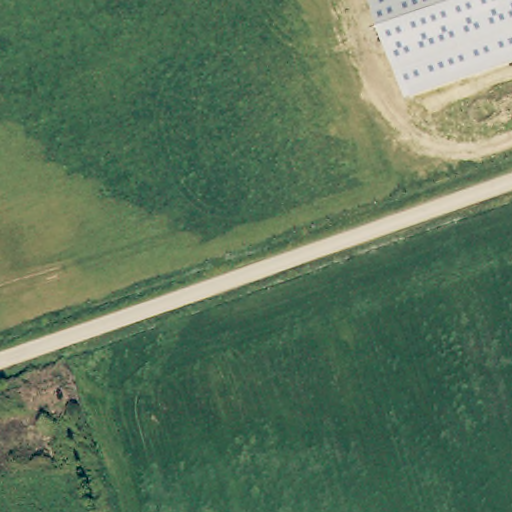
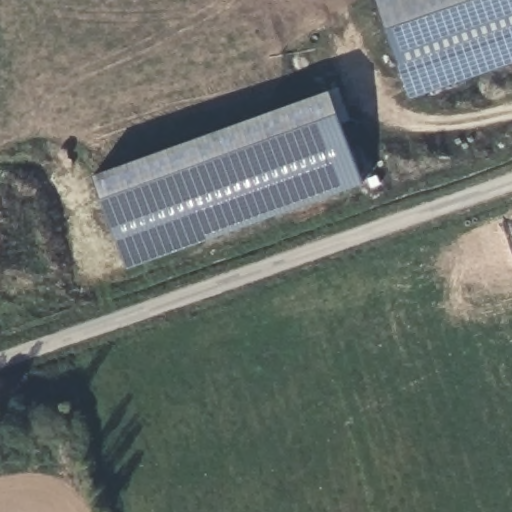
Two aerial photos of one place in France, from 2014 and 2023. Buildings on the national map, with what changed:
unchanged [(375,0),(512,0),(512,61),(407,97),(375,0)]
new [(331,87),(364,180),(127,264),(94,172),(331,87)]

